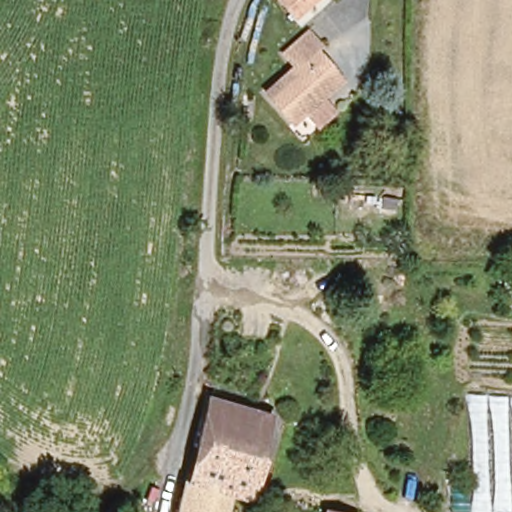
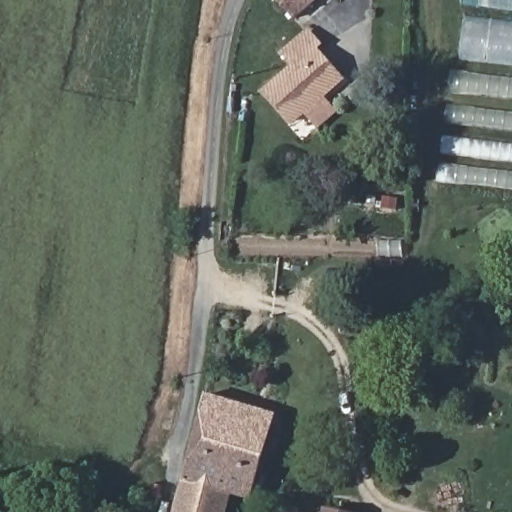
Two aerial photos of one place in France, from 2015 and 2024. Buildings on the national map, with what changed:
unchanged [(280,0),(317,0),(295,18),(280,0)]
new [(449,71),(454,71),(461,0),(512,0),(512,191),(436,182),(449,71)]
unchanged [(313,49),(340,79),(292,123),(263,91),(292,65),(282,53),(307,32),(318,45),(313,49)]
demolished [(512,396),(512,512),(468,512),(467,390),(512,396)]
unchanged [(223,491),(180,478),(202,395),(263,413),(242,496),(223,491)]
unchanged [(180,478),(223,491),(217,512),(171,512),(180,478)]

